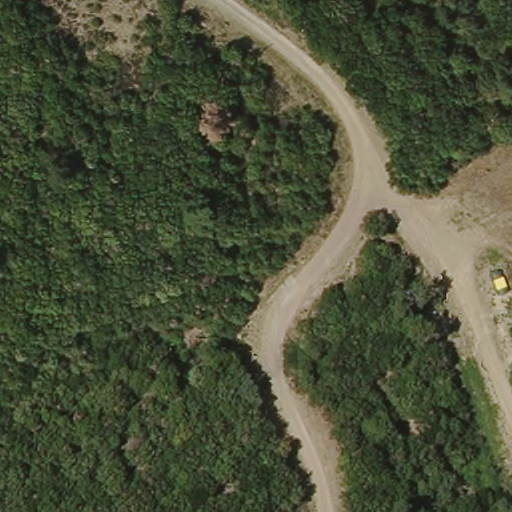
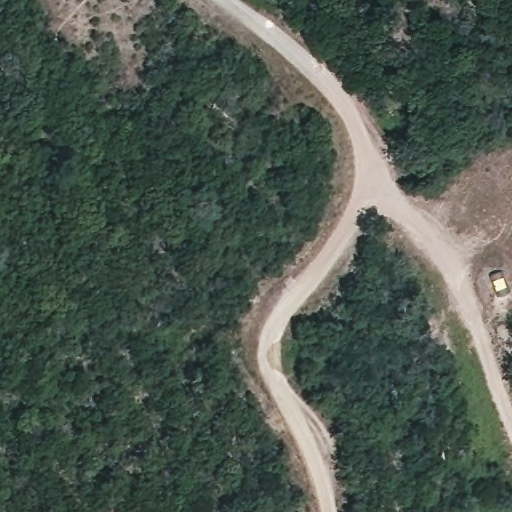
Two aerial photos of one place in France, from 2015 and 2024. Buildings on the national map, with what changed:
unchanged [(505,275),(508,292),(497,294),(492,277),(505,275)]

